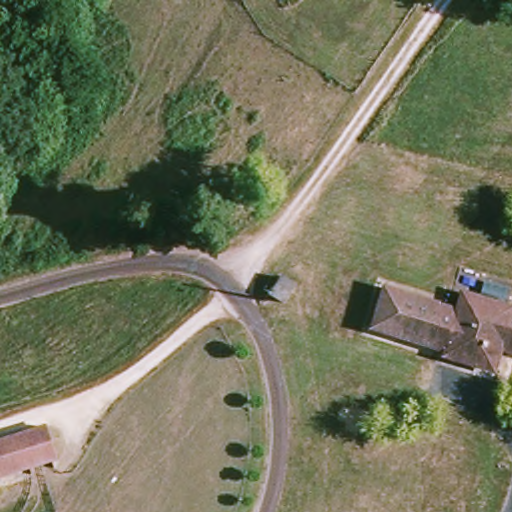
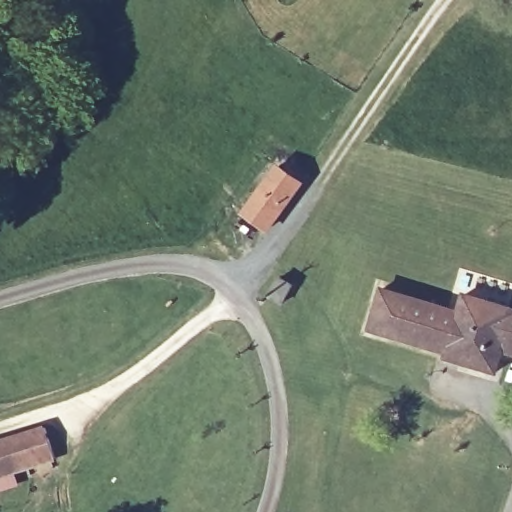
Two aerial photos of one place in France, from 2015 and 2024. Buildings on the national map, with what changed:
new [(269,232),(241,212),(279,161),(306,181),(269,232)]
unchanged [(476,295),(512,307),(512,352),(505,375),(455,360),(456,353),(380,329),(394,287),(470,313),(476,295)]
unchanged [(276,304),(270,315),(260,310),(266,298),(276,304)]
unchanged [(51,426),(60,456),(4,474),(0,475),(0,444),(51,426)]

